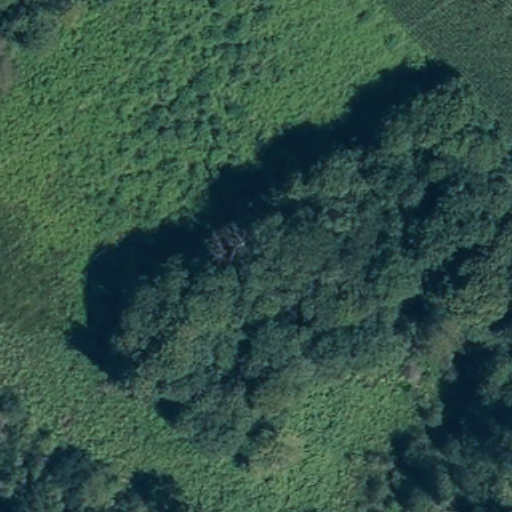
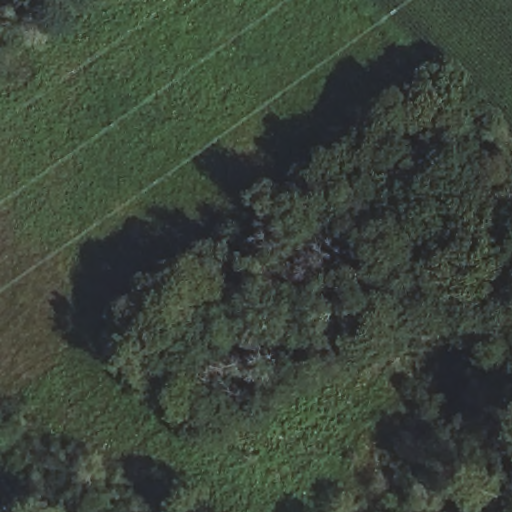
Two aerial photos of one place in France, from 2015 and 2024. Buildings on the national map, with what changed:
[]

